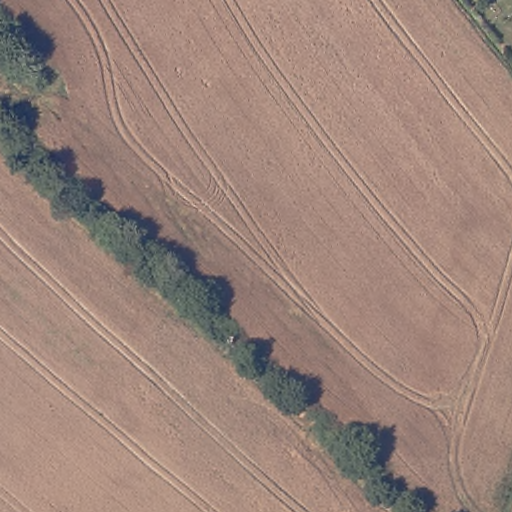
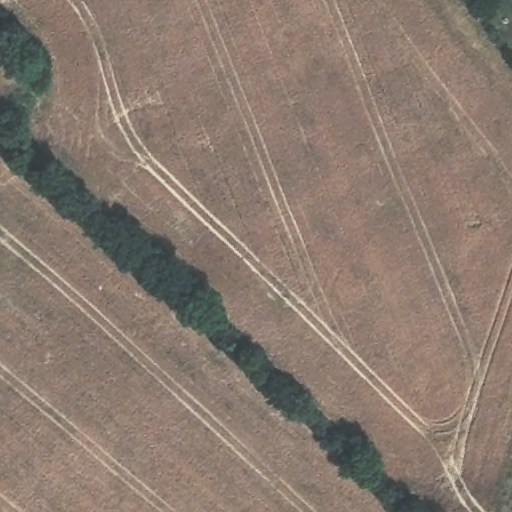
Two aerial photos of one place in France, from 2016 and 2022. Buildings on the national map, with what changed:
[]

